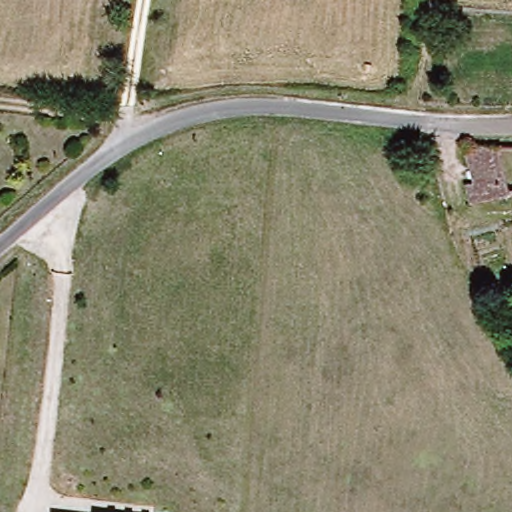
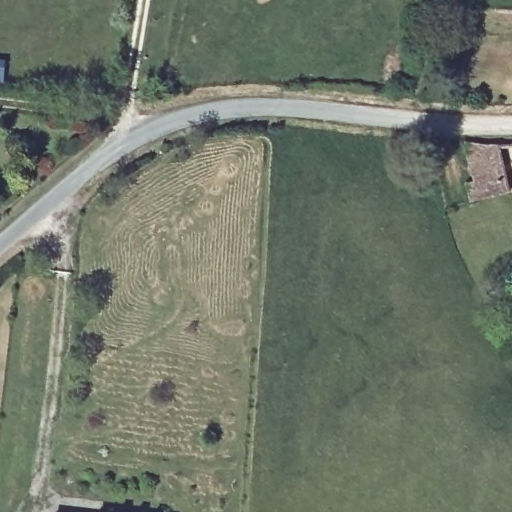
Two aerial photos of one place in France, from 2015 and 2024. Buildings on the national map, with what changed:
unchanged [(480,185),(476,168),(469,143),(501,143),(501,164),(501,174),(512,178),(512,193),(478,197),(475,202),(472,191),(480,185)]

